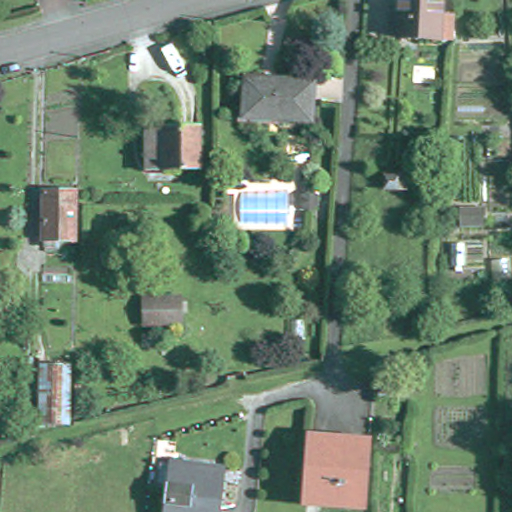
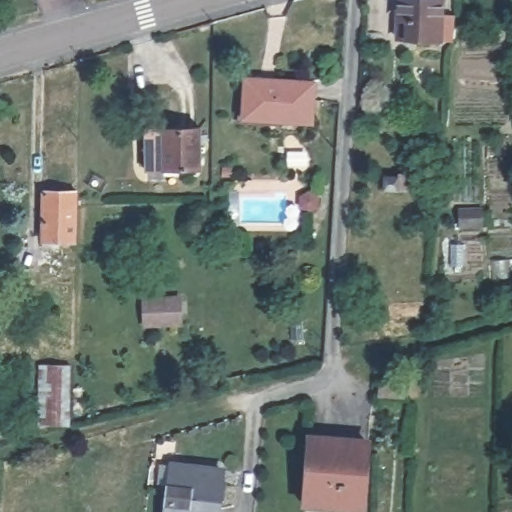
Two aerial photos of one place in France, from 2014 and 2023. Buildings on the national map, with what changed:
unchanged [(458,8),(456,35),(402,32),(404,0),(447,0),(447,8),(458,8)]
unchanged [(313,81),(311,118),(243,114),(246,78),(313,81)]
unchanged [(199,126),(200,167),(148,167),(146,128),(199,126)]
unchanged [(396,175),(396,189),(383,189),(383,174),(396,175)]
unchanged [(44,246),(44,239),(41,239),(42,190),(75,190),(74,239),(55,239),(55,246),(44,246)]
unchanged [(178,297),(178,321),(145,322),(144,298),(178,297)]
unchanged [(40,362),(69,363),(68,425),(39,424),(40,362)]
unchanged [(303,505),(304,495),(309,434),(367,439),(362,500),(361,511),(303,505)]
unchanged [(220,512),(169,512),(172,483),(159,481),(161,462),(174,464),(224,469),(220,512)]

